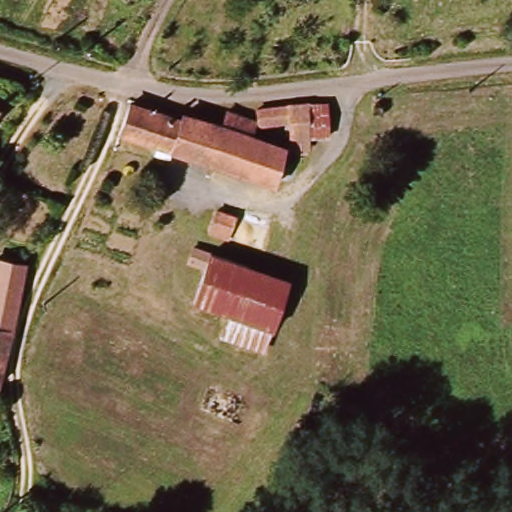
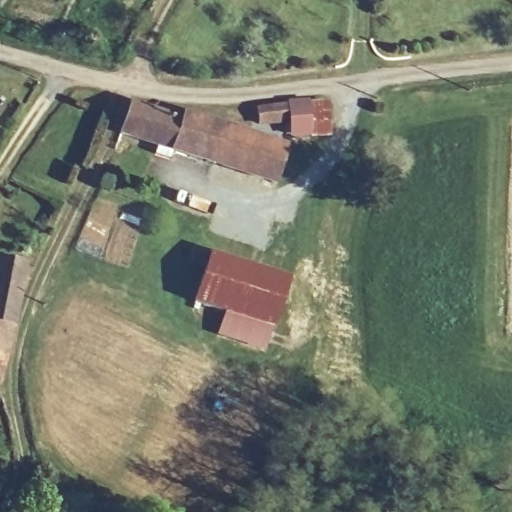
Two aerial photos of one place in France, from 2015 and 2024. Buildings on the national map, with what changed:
unchanged [(286,140),(282,129),(263,133),(258,114),(318,97),(325,119),(331,138),(316,144),(290,152),(286,140)]
unchanged [(176,117),(202,126),(226,134),(230,122),(257,131),(252,143),(285,154),(275,191),(240,178),(169,151),(120,135),(116,132),(127,107),(173,125),(176,117)]
unchanged [(196,234),(203,219),(222,226),(216,242),(196,234)]
unchanged [(216,338),(221,315),(191,305),(210,255),(290,276),(260,353),(216,338)]
unchanged [(20,265),(10,322),(0,321),(0,262),(20,265)]
unchanged [(10,322),(12,322),(0,373),(0,321),(10,322)]

